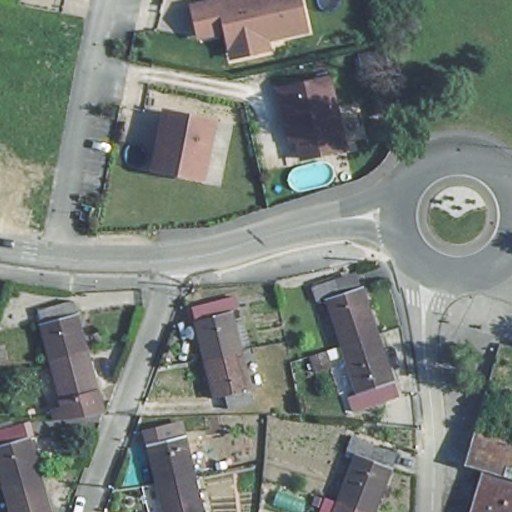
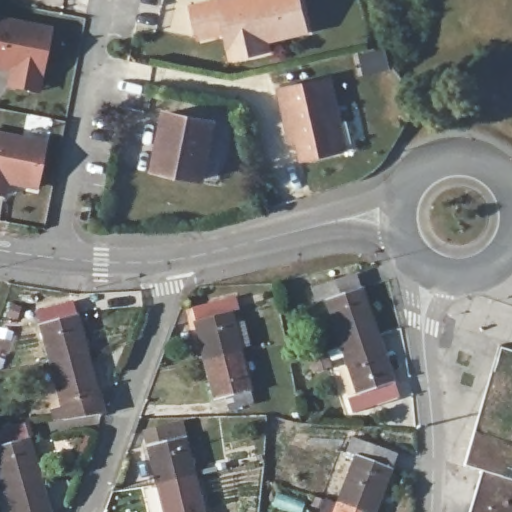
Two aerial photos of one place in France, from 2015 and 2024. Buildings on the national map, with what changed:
unchanged [(231,59),(230,49),(226,32),(199,38),(193,7),(224,0),(226,0),(299,0),(306,32),(266,41),(268,51),(231,59)]
new [(0,70),(0,16),(52,25),(40,93),(5,87),(8,71),(0,70)]
unchanged [(290,105),(287,86),(337,80),(347,152),(303,158),(300,140),(295,140),(290,105)]
unchanged [(163,141),(168,142),(174,114),(218,122),(206,180),(165,172),(158,171),(163,141)]
new [(38,190),(8,185),(6,197),(0,196),(0,131),(48,140),(38,190)]
unchanged [(316,298),(312,285),(336,278),(356,271),(360,282),(376,330),(341,341),(326,295),(316,298)]
unchanged [(203,360),(190,309),(233,299),(237,312),(230,313),(233,327),(243,325),(249,347),(238,350),(239,353),(203,360)]
unchanged [(49,362),(35,310),(71,301),(85,353),(49,362)]
unchanged [(397,393),(351,408),(346,395),(358,391),(341,341),(376,330),(397,393)]
unchanged [(324,351),(329,366),(311,372),(306,357),(324,351)]
unchanged [(98,405),(63,415),(49,362),(85,353),(98,405)]
unchanged [(251,405),(226,411),(223,398),(213,401),(203,360),(239,353),(251,405)]
unchanged [(0,480),(0,428),(17,424),(20,435),(31,433),(42,470),(6,478),(0,480)]
unchanged [(148,445),(143,447),(140,435),(155,431),(154,430),(178,424),(191,475),(156,483),(148,445)]
unchanged [(346,446),(350,434),(373,443),(395,451),(390,463),(372,509),(339,496),(356,450),(346,446)]
unchanged [(16,512),(6,478),(42,470),(53,512),(16,512)]
unchanged [(512,477),(512,512),(470,512),(486,470),(512,477)]
unchanged [(200,512),(163,512),(156,483),(191,475),(200,512)]
unchanged [(372,509),(371,512),(332,512),(339,496),(372,509)]

